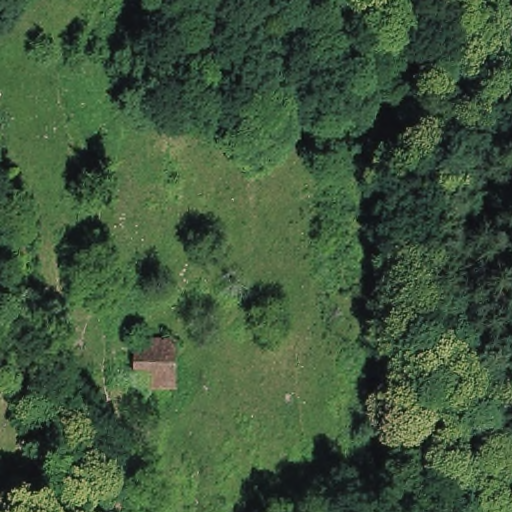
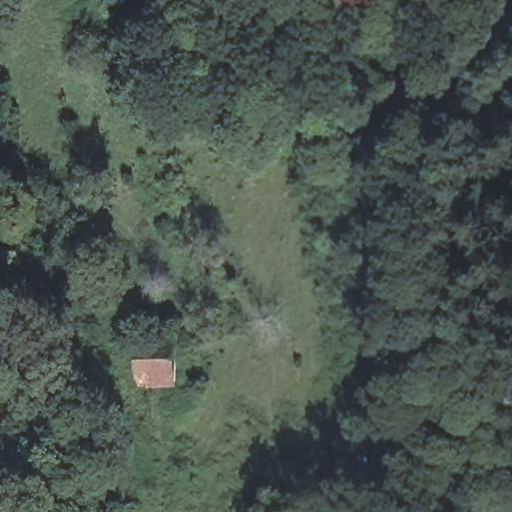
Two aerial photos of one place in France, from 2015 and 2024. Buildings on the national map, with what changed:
unchanged [(134,346),(173,346),(172,387),(134,387),(134,346)]

